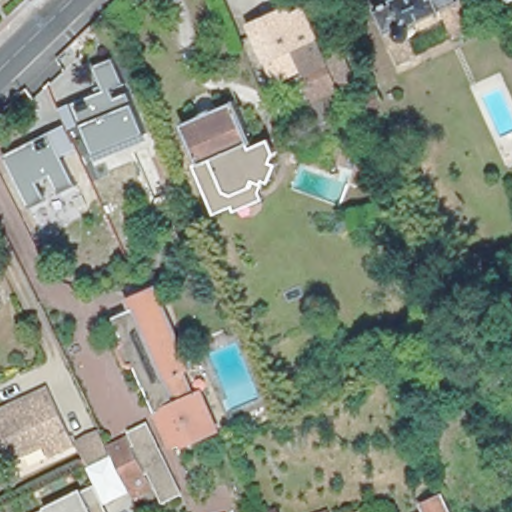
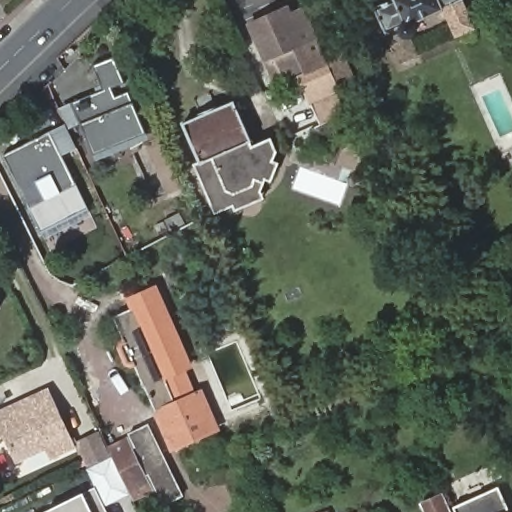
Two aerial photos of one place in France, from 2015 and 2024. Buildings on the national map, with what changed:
unchanged [(394,0),(464,0),(477,29),(456,38),(443,10),(415,22),(415,24),(416,27),(415,30),(415,33),(412,35),(411,37),(419,55),(401,63),(376,8),(394,0)]
unchanged [(305,52),(297,55),(300,62),(270,75),(244,20),(257,13),(255,7),(267,1),(270,8),(282,3),(285,10),(297,5),(321,58),(310,63),(305,52)]
unchanged [(124,82),(111,87),(115,97),(130,92),(151,139),(96,160),(81,123),(71,127),(62,106),(105,91),(95,66),(115,57),(124,82)]
unchanged [(310,63),(321,58),(343,107),(325,114),(335,133),(307,123),(316,119),(294,70),(310,63)]
unchanged [(257,192),(230,204),(228,198),(209,206),(189,159),(194,157),(178,118),(230,97),(246,137),(244,138),(246,143),(253,139),(265,134),(270,147),(266,157),(272,160),(265,178),(260,176),(258,180),(255,187),(257,192)]
unchanged [(61,156),(76,183),(60,191),(51,173),(36,180),(45,199),(31,207),(5,155),(65,125),(77,149),(61,156)]
unchanged [(158,291),(194,370),(186,373),(197,398),(205,394),(222,431),(177,451),(150,388),(147,389),(137,365),(134,367),(124,345),(128,343),(125,338),(117,319),(137,310),(134,301),(158,291)]
unchanged [(1,301),(0,302),(0,298),(1,301)]
unchanged [(4,428),(0,429),(0,405),(49,383),(75,440),(50,451),(45,441),(15,454),(4,428)]
unchanged [(126,440),(130,449),(136,446),(131,437),(149,429),(178,490),(161,499),(149,472),(142,475),(150,490),(131,499),(114,462),(107,449),(126,440)]
new [(453,506),(499,486),(511,512),(455,512),(453,506)]
unchanged [(96,490),(107,512),(51,512),(96,490)]
unchanged [(426,504),(445,496),(452,512),(429,512),(426,504)]

